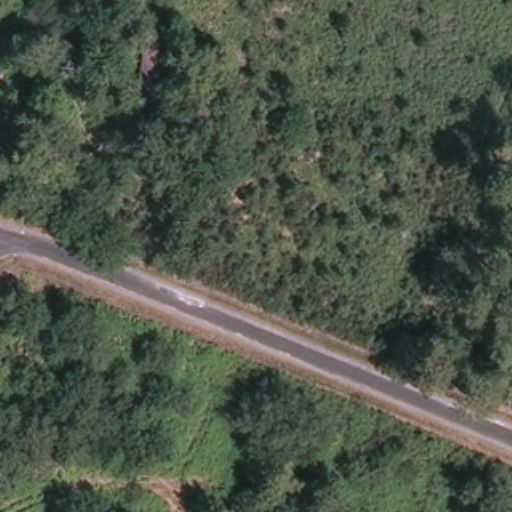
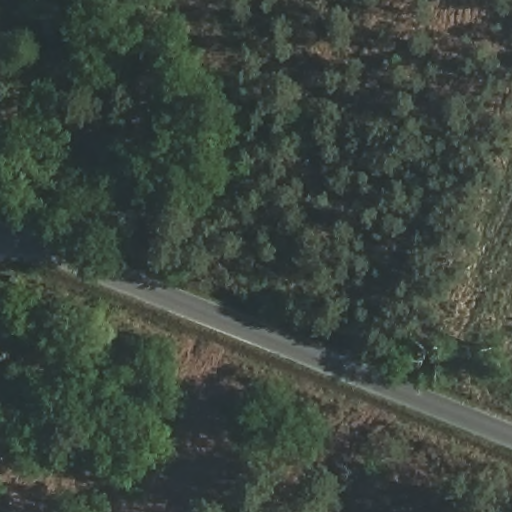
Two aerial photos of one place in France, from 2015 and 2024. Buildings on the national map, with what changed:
unchanged [(190,51),(186,115),(127,113),(130,48),(190,51)]

